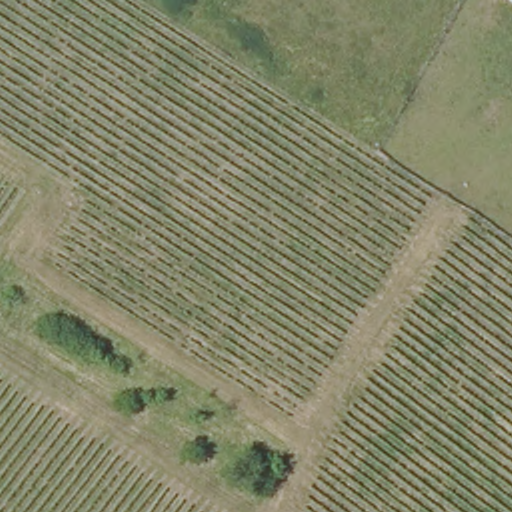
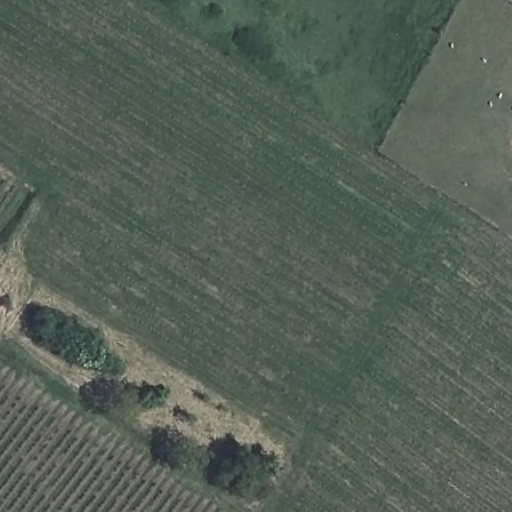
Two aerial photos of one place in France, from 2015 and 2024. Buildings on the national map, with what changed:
[]

